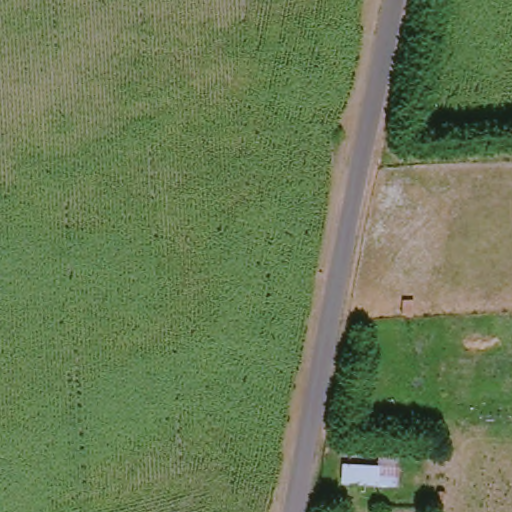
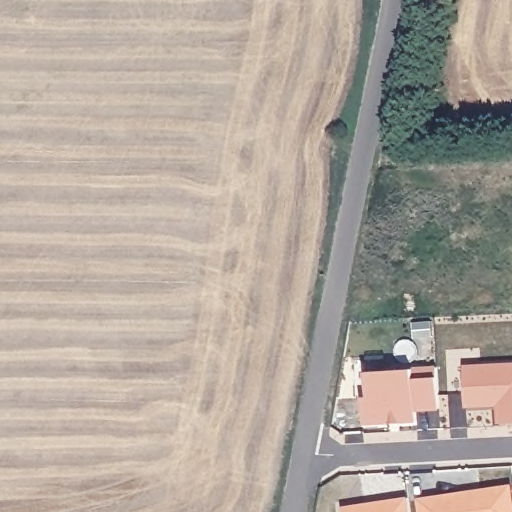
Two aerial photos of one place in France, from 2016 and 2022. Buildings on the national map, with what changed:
new [(469,404),(466,364),(512,363),(512,421),(502,422),(500,403),(494,403),(469,404)]
new [(370,395),(369,370),(439,366),(441,407),(418,408),(417,420),(402,421),(402,418),(391,418),(392,422),(365,422),(364,396),(370,395)]
new [(512,485),(512,489),(512,512),(423,512),(421,499),(441,496),(467,492),(512,485)]
new [(407,497),(409,512),(341,512),(340,507),(365,503),(387,500),(407,497)]

